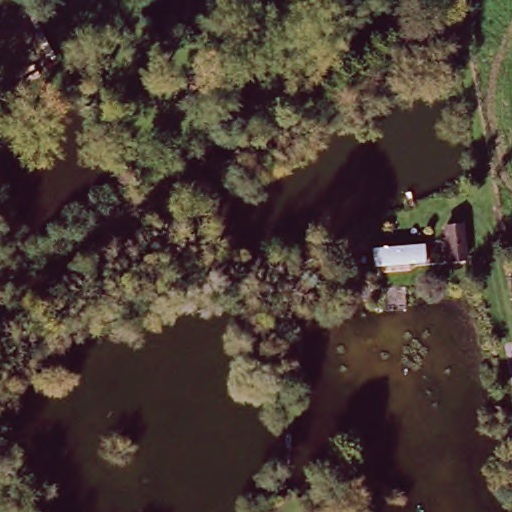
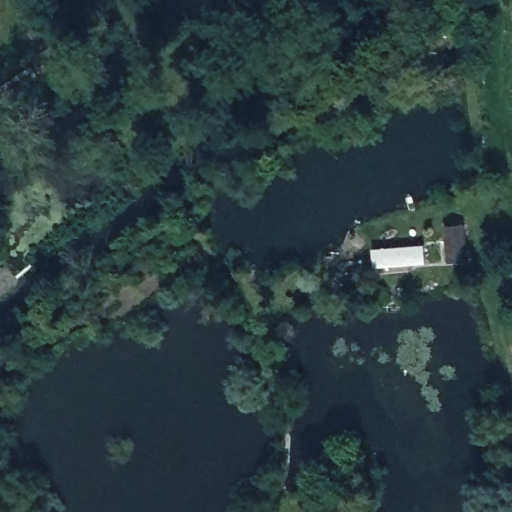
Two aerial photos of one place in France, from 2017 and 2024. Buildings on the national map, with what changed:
unchanged [(447,229),(465,227),(468,264),(450,265),(447,229)]
unchanged [(373,250),(429,248),(427,271),(375,277),(373,250)]

